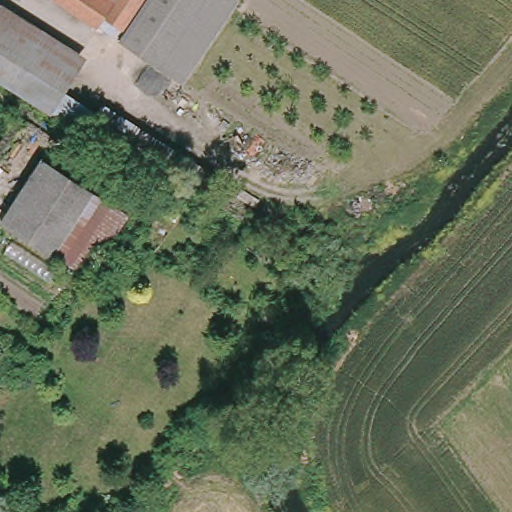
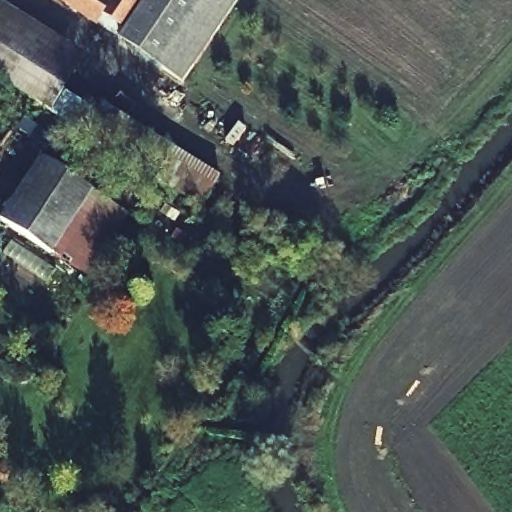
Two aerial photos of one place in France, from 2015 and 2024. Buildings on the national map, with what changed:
unchanged [(127,28),(107,14),(100,23),(66,0),(146,0),(127,28)]
unchanged [(183,79),(121,37),(127,28),(146,0),(238,0),(183,79)]
unchanged [(0,75),(0,16),(82,69),(67,93),(102,116),(110,102),(138,120),(119,150),(90,132),(56,111),(0,75)]
unchanged [(138,120),(227,176),(207,206),(119,150),(138,120)]
unchanged [(129,218),(90,278),(2,219),(39,159),(129,218)]

